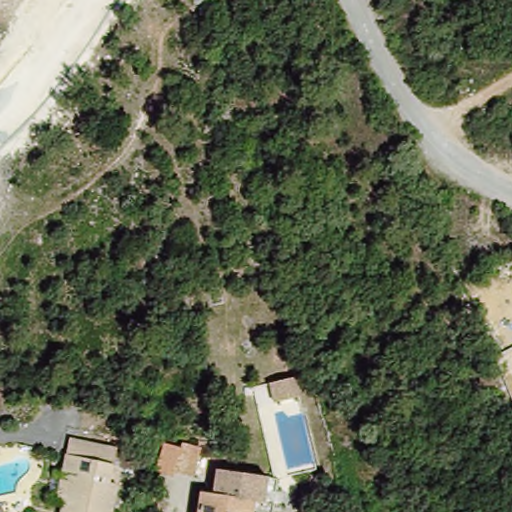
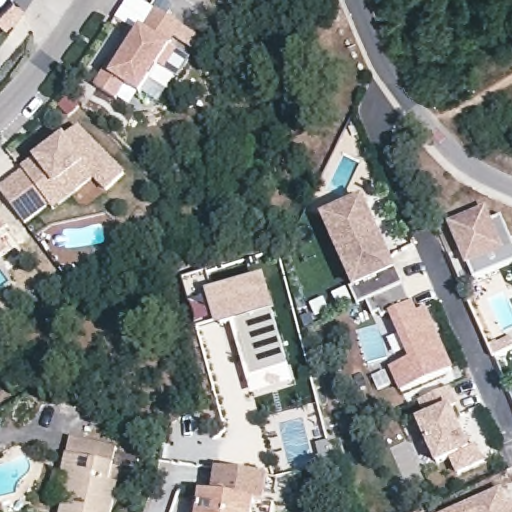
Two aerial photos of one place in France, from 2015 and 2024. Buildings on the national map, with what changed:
new [(130,50),(144,28),(156,9),(180,24),(167,43),(193,60),(162,108),(139,113),(100,88),(123,52),(130,50)]
new [(28,176),(27,174),(69,142),(72,147),(86,137),(129,182),(109,197),(98,183),(57,214),(53,209),(28,228),(3,195),(28,176)]
new [(390,368),(411,359),(391,313),(381,318),(379,313),(373,315),(368,302),(357,305),(349,289),(354,287),(323,215),(365,197),(397,270),(411,304),(414,302),(419,313),(426,310),(453,368),(426,380),(399,391),(390,368)]
new [(483,219),(496,213),(512,250),(512,258),(454,283),(430,229),(478,208),(483,219)]
unchanged [(14,234),(2,243),(15,259),(0,270),(0,216),(14,234)]
new [(252,393),(234,323),(217,327),(216,320),(197,325),(186,279),(209,273),(214,292),(266,277),(288,367),(292,384),(252,393)]
demolished [(273,378),(292,373),(298,397),(279,402),(273,378)]
new [(456,472),(452,460),(436,466),(417,418),(425,415),(419,402),(450,389),(456,404),(452,405),(470,449),(479,444),(485,462),(456,472)]
demolished [(181,445),(184,435),(185,433),(191,435),(202,439),(192,471),(175,466),(173,472),(157,467),(165,440),(181,445)]
unchanged [(65,501),(58,500),(62,470),(65,453),(70,437),(116,447),(112,463),(124,466),(120,485),(114,512),(64,512),(66,502),(65,501)]
demolished [(7,467),(10,477),(1,478),(0,474),(0,469),(7,467)]
unchanged [(185,512),(188,492),(202,492),(206,468),(273,478),(267,512),(185,512)]
new [(444,512),(466,502),(499,488),(509,512),(444,512)]

